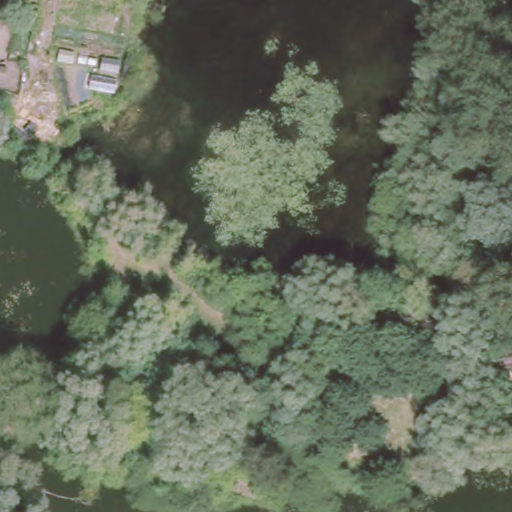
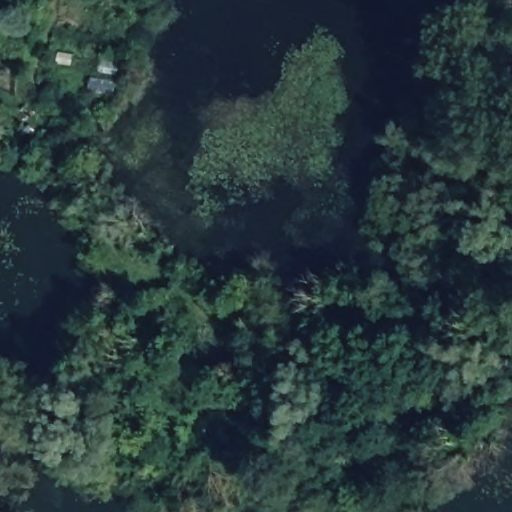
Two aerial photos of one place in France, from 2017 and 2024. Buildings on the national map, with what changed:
unchanged [(21,5),(2,0),(22,0),(21,5)]
unchanged [(1,125),(6,104),(19,108),(13,129),(1,125)]

